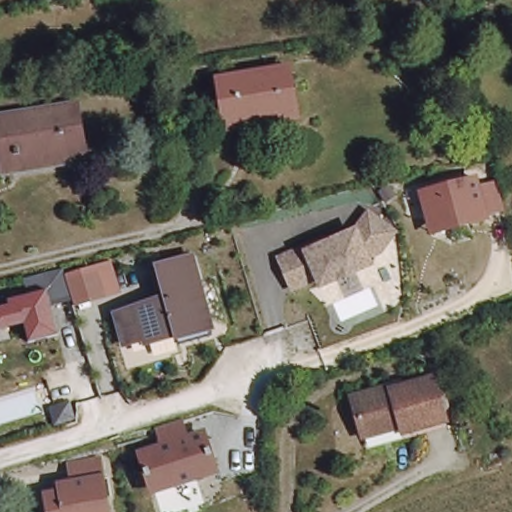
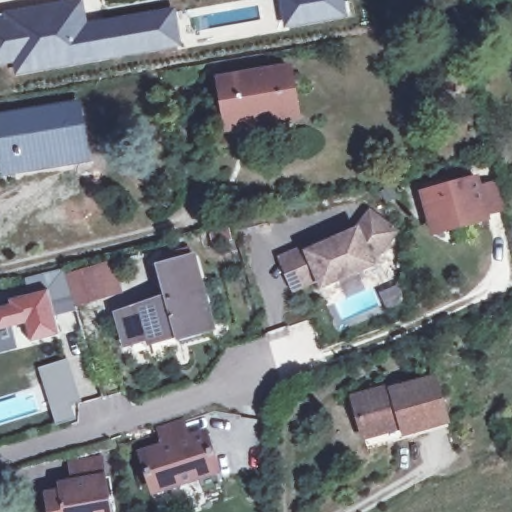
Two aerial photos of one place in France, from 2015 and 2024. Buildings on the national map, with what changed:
new [(345,16),(287,28),(282,0),(342,0),(345,16)]
new [(11,24),(10,16),(77,4),(83,28),(172,12),(177,42),(18,69),(17,57),(0,61),(0,26),(11,24)]
unchanged [(268,115),(226,121),(220,79),(288,68),(296,117),(269,122),(268,115)]
unchanged [(5,154),(0,127),(0,117),(75,105),(82,150),(84,158),(62,162),(20,169),(7,171),(5,154)]
unchanged [(478,175),(480,186),(498,180),(506,212),(487,216),(488,222),(428,234),(416,191),(478,175)]
unchanged [(318,240),(350,227),(362,210),(387,229),(372,248),(360,252),(362,258),(315,281),(311,274),(300,248),(318,240)]
unchanged [(300,248),(311,274),(286,285),(273,254),(316,235),(318,240),(300,248)]
unchanged [(130,345),(122,314),(160,304),(160,307),(172,303),(163,268),(198,259),(215,330),(182,340),(182,336),(150,345),(149,341),(130,345)]
unchanged [(62,274),(93,264),(103,291),(71,302),(62,274)]
unchanged [(46,289),(49,302),(56,334),(27,341),(22,321),(0,327),(0,300),(7,299),(30,293),(46,289)]
new [(39,367),(69,359),(81,401),(73,404),(77,419),(56,425),(39,367)]
unchanged [(357,438),(347,398),(385,386),(386,391),(428,380),(440,423),(398,434),(396,427),(357,438)]
unchanged [(146,464),(149,463),(144,447),(168,440),(163,425),(176,420),(181,418),(186,434),(204,429),(209,445),(212,444),(213,450),(210,451),(215,467),(156,485),(150,469),(148,470),(146,464)]
unchanged [(70,476),(66,458),(96,453),(99,471),(106,512),(47,512),(45,498),(42,488),(50,487),(57,486),(56,478),(70,476)]

